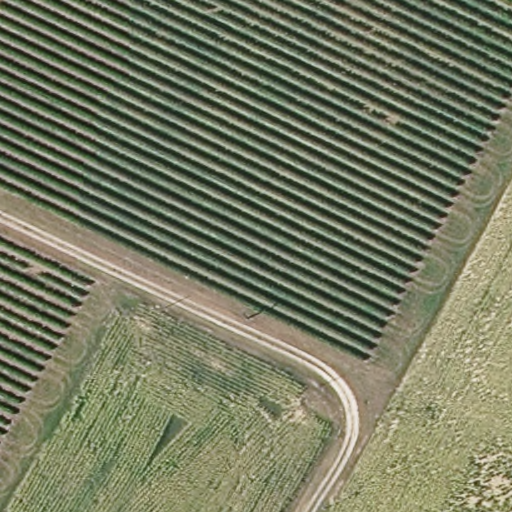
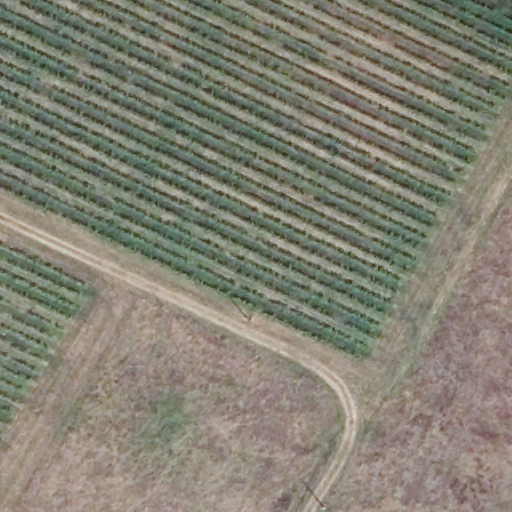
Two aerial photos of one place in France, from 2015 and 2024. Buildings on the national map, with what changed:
[]

